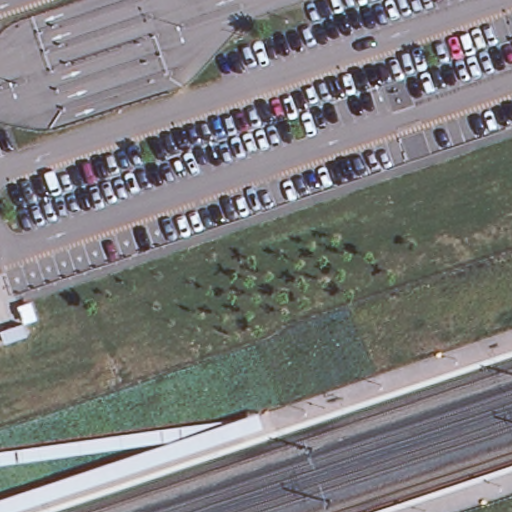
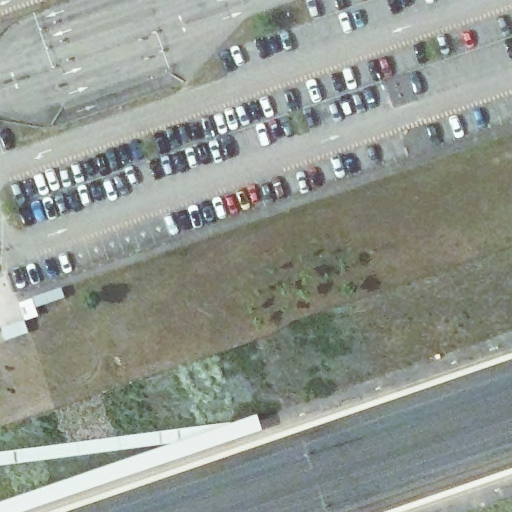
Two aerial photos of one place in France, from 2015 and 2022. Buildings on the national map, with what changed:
[]

